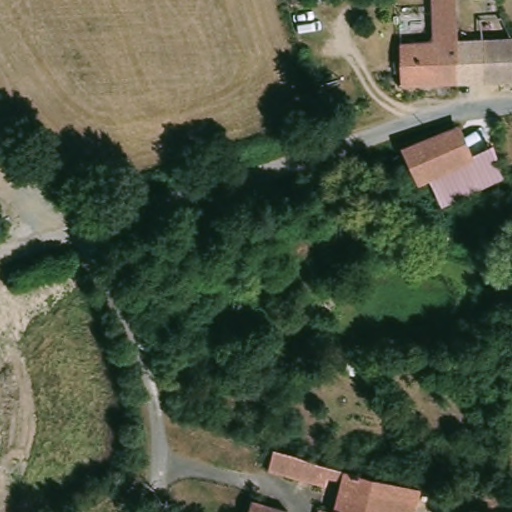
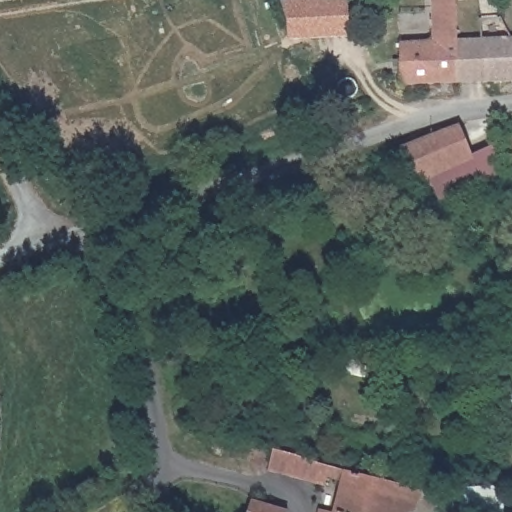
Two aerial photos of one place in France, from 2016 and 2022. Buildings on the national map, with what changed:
new [(347,33),(294,35),(282,0),(346,0),(347,33)]
unchanged [(401,83),(400,56),(399,40),(433,38),(432,0),(456,0),(456,37),(457,80),(401,83)]
unchanged [(456,37),(481,36),(480,16),(502,15),(511,35),(512,35),(512,78),(457,80),(456,37)]
unchanged [(460,124),(473,155),(438,170),(418,178),(404,146),(460,124)]
unchanged [(473,155),(494,146),(499,156),(501,162),(504,170),(502,171),(448,193),(438,170),(473,155)]
unchanged [(361,464),(355,487),(350,486),(350,484),(286,467),(290,445),(361,464)]
unchanged [(350,510),(355,487),(361,464),(393,473),(384,512),(336,512),(337,506),(350,510)]

